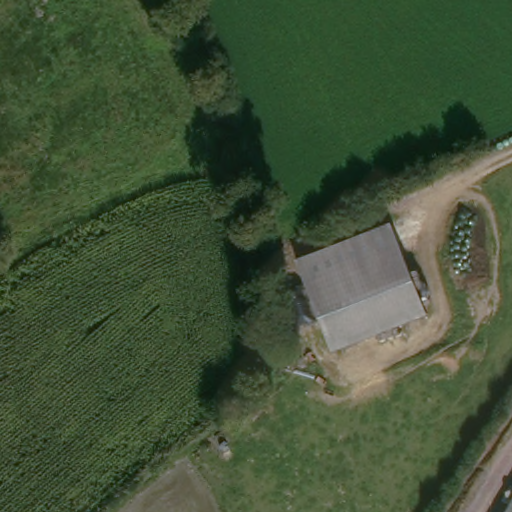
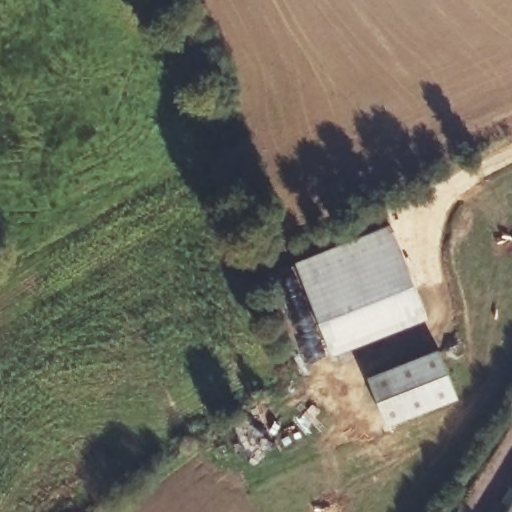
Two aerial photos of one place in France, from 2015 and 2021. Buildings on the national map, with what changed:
unchanged [(439,322),(336,360),(301,265),(400,227),(439,322)]
new [(459,398),(389,426),(369,376),(439,349),(459,398)]
unchanged [(512,512),(503,512),(512,497),(512,512)]

